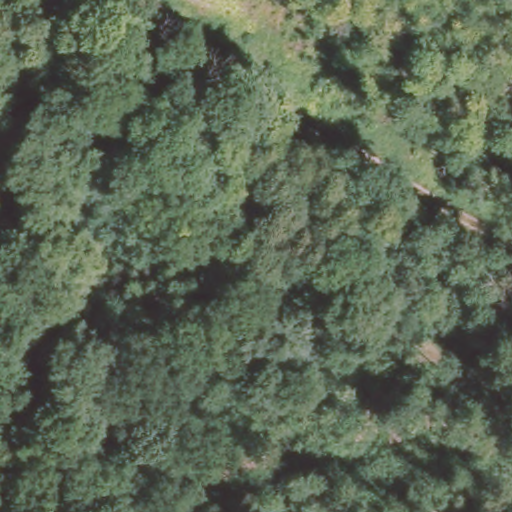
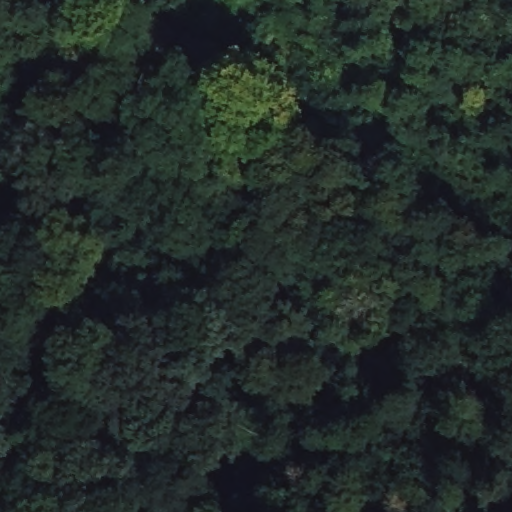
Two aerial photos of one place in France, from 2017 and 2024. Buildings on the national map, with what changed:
unchanged [(151,106),(134,100),(148,64),(165,70),(151,106)]

